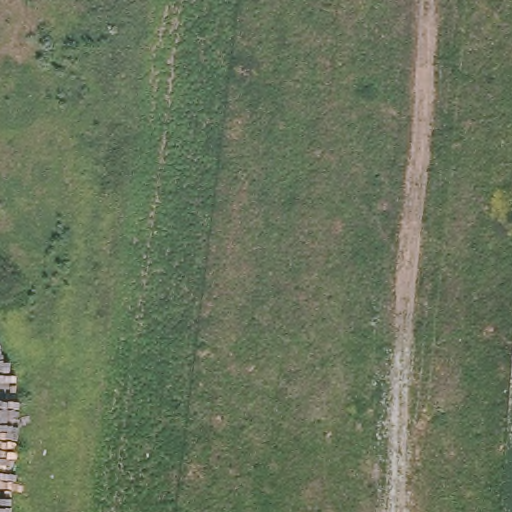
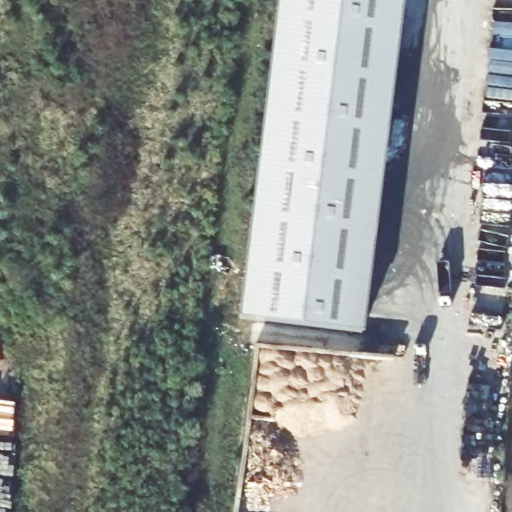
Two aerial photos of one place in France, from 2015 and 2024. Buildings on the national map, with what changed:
new [(240,317),(278,0),(403,0),(363,333),(240,317)]

